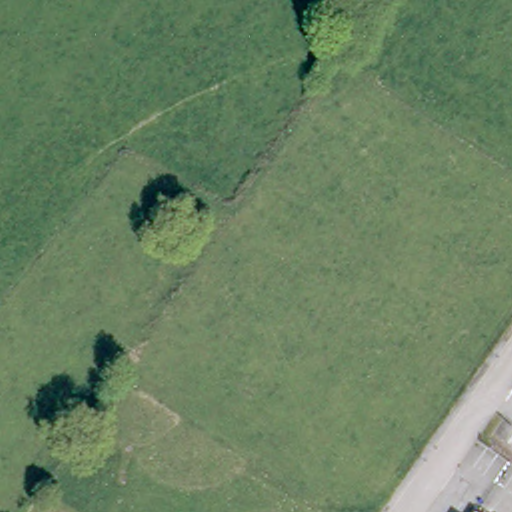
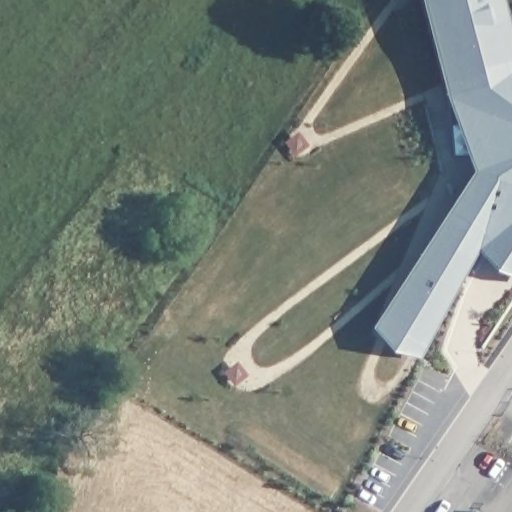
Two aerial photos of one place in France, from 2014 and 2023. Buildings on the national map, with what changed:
new [(485,86),(452,93),(445,95),(420,0),(501,0),(512,43),(512,66),(482,74),(485,86)]
new [(470,123),(450,128),(452,93),(485,86),(482,74),(512,66),(512,259),(485,236),(447,212),(487,170),(470,123)]
new [(485,236),(418,357),(391,353),(371,330),(447,212),(485,236)]
unchanged [(483,512),(475,512),(477,509),(483,512)]

